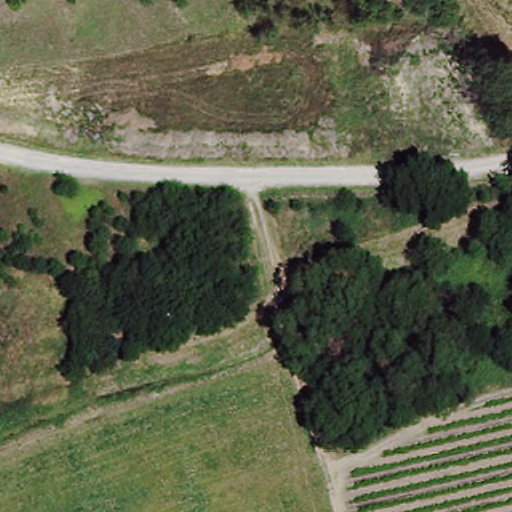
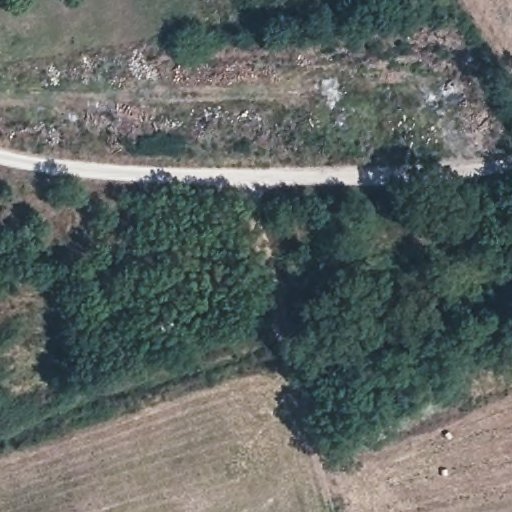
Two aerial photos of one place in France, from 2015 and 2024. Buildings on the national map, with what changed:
[]

